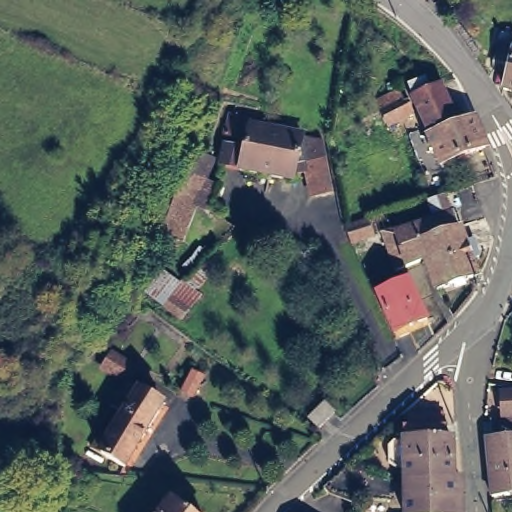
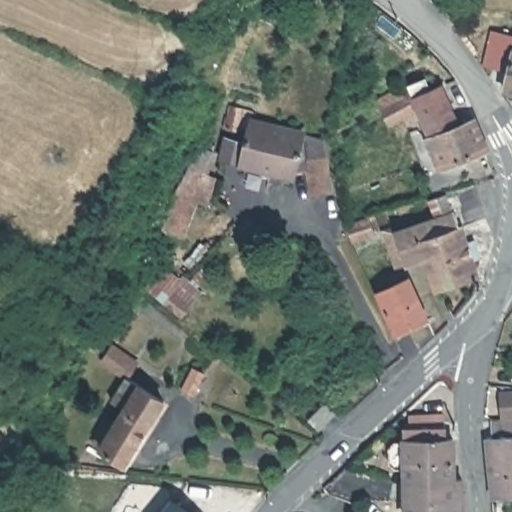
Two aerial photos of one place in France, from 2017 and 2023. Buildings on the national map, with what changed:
unchanged [(510,71),(497,69),(504,35),(512,38),(512,92),(507,91),(510,71)]
unchanged [(479,122),(489,149),(446,165),(440,151),(434,152),(429,139),(434,136),(414,86),(429,79),(434,90),(444,86),(464,126),(478,120),(479,122)]
unchanged [(419,111),(394,124),(388,110),(412,97),(419,111)]
unchanged [(339,191),(319,195),(314,169),(299,172),(297,177),(245,165),(224,161),(229,139),(250,143),(255,124),(245,121),(242,131),(229,129),(234,107),(258,112),(255,122),(328,139),(339,191)]
unchanged [(165,230),(196,142),(218,149),(191,240),(165,230)]
unchanged [(393,247),(388,234),(402,229),(403,233),(460,215),(469,244),(479,240),(485,257),(476,260),(481,276),(444,290),(433,258),(428,260),(402,270),(394,247),(393,247)]
unchanged [(373,217),(379,234),(356,241),(349,227),(349,226),(373,217)]
unchanged [(208,290),(187,324),(145,290),(169,264),(208,290)]
unchanged [(427,320),(418,325),(419,328),(397,338),(376,293),(409,278),(427,320)]
unchanged [(458,316),(453,308),(468,290),(474,296),(458,316)]
unchanged [(129,470),(96,450),(106,435),(115,440),(119,433),(115,430),(118,425),(122,428),(129,416),(114,407),(130,382),(106,367),(115,353),(141,368),(131,383),(168,407),(129,470)]
unchanged [(180,390),(191,370),(203,376),(192,395),(180,390)]
unchanged [(324,404),(334,413),(319,430),(309,420),(324,404)]
unchanged [(409,468),(399,468),(394,462),(393,447),(399,441),(409,441),(409,428),(415,428),(414,419),(446,418),(446,427),(449,427),(450,439),(457,439),(459,480),(409,481),(409,468)]
unchanged [(491,497),(486,438),(493,437),(493,421),(512,419),(512,496),(491,498),(491,497)]
unchanged [(351,467),(353,470),(407,481),(409,481),(410,502),(364,502),(337,491),(331,485),(351,467)]
unchanged [(410,502),(409,481),(459,480),(466,478),(466,512),(410,512),(410,502)]
unchanged [(184,512),(170,512),(176,505),(184,512)]

